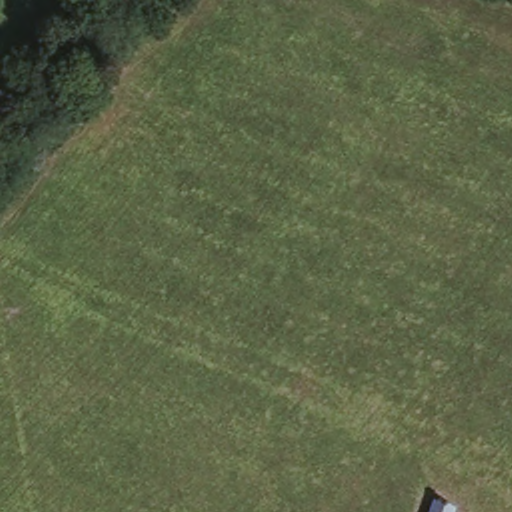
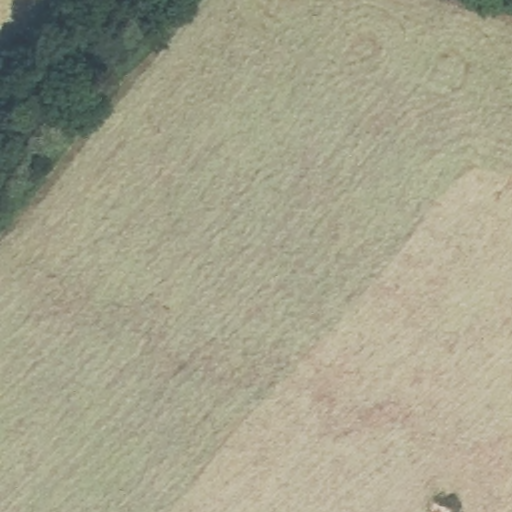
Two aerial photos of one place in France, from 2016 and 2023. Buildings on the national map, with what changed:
unchanged [(444,498),(462,512),(433,512),(444,498)]

